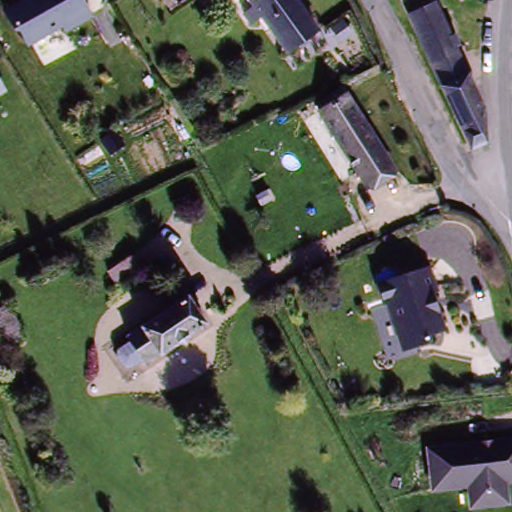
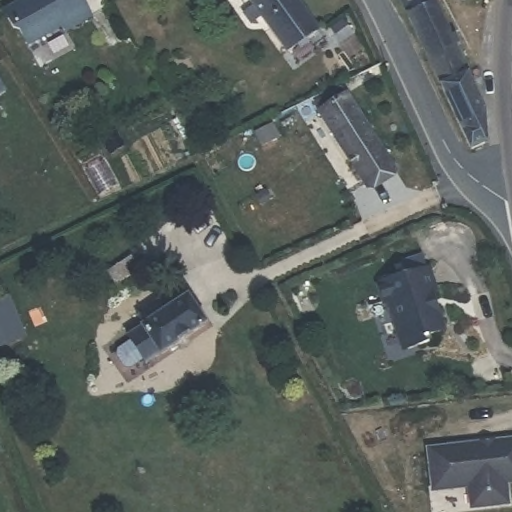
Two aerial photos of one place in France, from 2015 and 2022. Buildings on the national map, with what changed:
unchanged [(29,45),(24,30),(18,32),(9,14),(35,0),(85,0),(95,21),(70,34),(68,30),(37,43),(29,45)]
unchanged [(282,55),(246,0),(296,0),(317,32),(282,55)]
unchanged [(436,0),(470,79),(477,103),(481,141),(465,148),(398,0),(436,0)]
unchanged [(5,89),(9,95),(0,100),(0,80),(5,89)]
unchanged [(394,175),(369,191),(322,117),(347,101),(394,175)]
unchanged [(132,258),(140,273),(115,288),(106,272),(132,258)]
unchanged [(440,290),(437,291),(447,330),(430,335),(432,342),(407,349),(392,301),(389,302),(384,282),(434,267),(440,290)]
unchanged [(132,344),(130,338),(193,297),(210,323),(146,365),(144,362),(126,373),(115,356),(132,344)]
unchanged [(2,312),(17,342),(0,351),(0,314),(2,312)]
unchanged [(512,484),(512,502),(480,507),(476,486),(458,488),(457,485),(442,488),(435,455),(453,452),(452,449),(512,441),(512,480),(512,484)]

